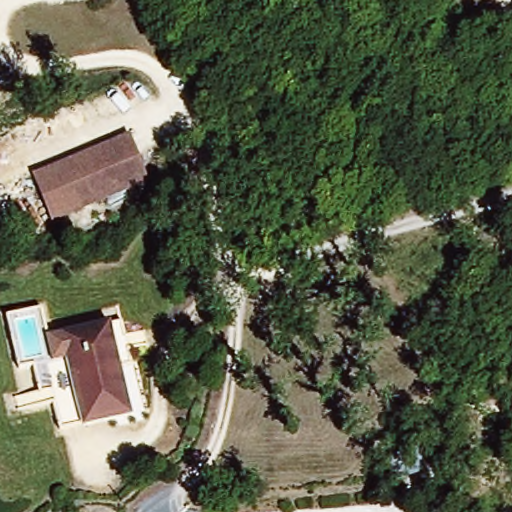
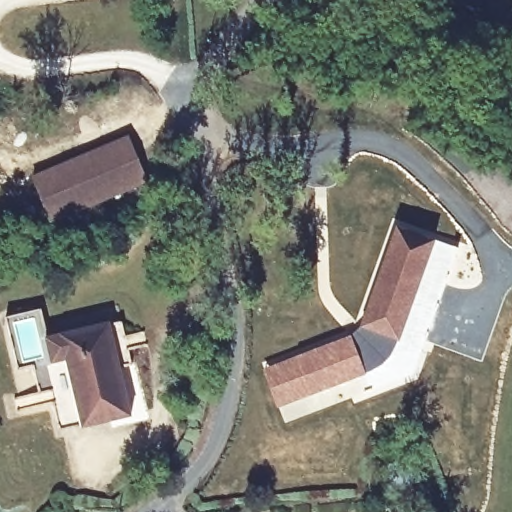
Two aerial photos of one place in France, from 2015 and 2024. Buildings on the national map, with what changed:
unchanged [(49,225),(31,180),(129,141),(147,185),(49,225)]
new [(355,327),(358,322),(394,221),(437,237),(436,240),(406,322),(394,350),(384,362),(366,373),(349,332),(355,327)]
unchanged [(111,326),(121,370),(109,372),(120,421),(71,432),(49,337),(98,326),(98,328),(111,326)]
new [(349,332),(366,373),(277,408),(262,368),(349,332)]

